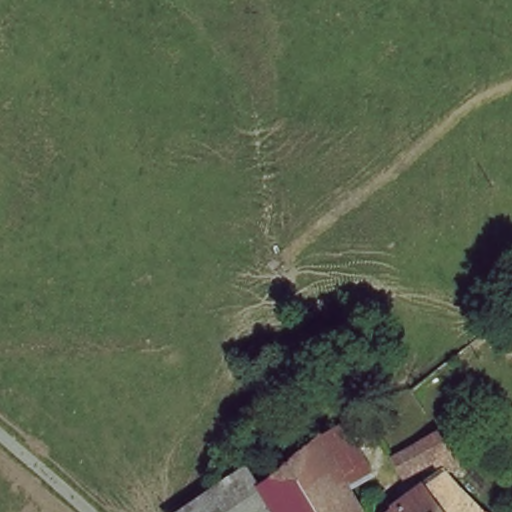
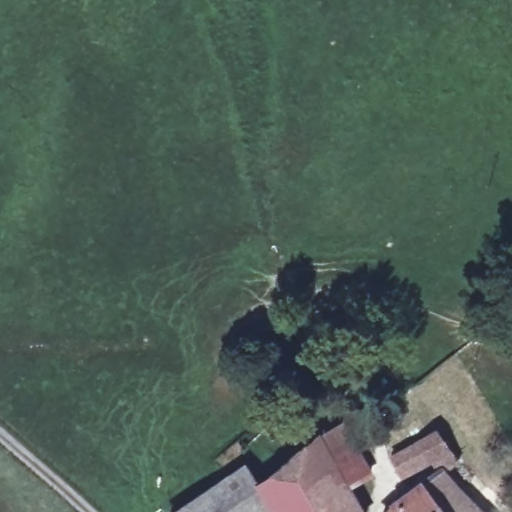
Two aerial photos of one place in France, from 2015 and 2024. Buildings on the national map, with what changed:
unchanged [(351,475),(369,505),(356,511),(357,512),(268,512),(251,483),(321,424),(351,475)]
unchanged [(441,425),(456,450),(439,459),(433,447),(406,461),(399,447),(427,435),(441,425)]
unchanged [(443,512),(424,475),(439,459),(471,512),(443,512)]
unchanged [(443,512),(386,512),(424,475),(443,512)]
unchanged [(173,512),(172,511),(176,508),(221,481),(232,500),(240,512),(173,512)]
unchanged [(251,483),(268,512),(240,512),(232,500),(251,483)]

